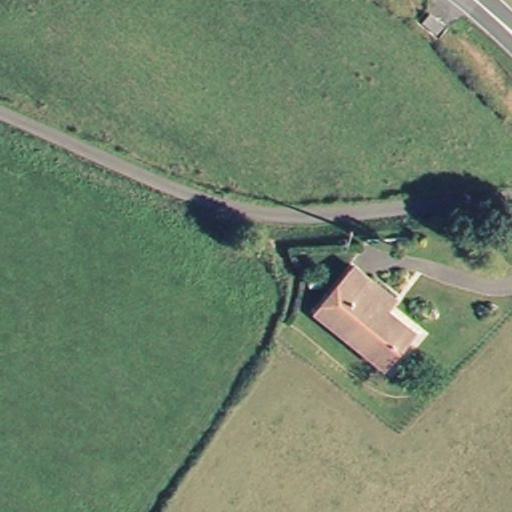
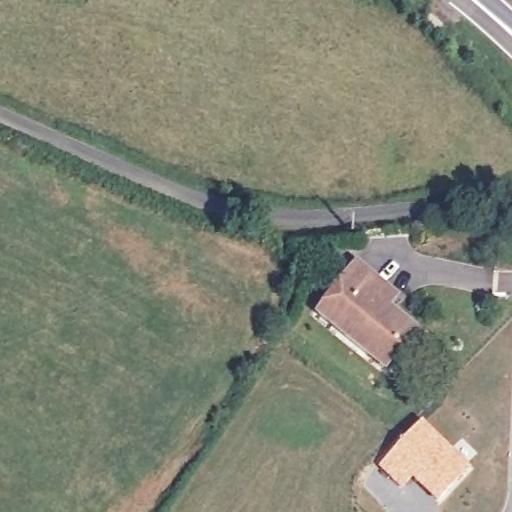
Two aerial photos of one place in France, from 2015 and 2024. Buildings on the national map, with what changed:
unchanged [(380,300),(416,329),(390,367),(320,317),(357,263),(390,286),(380,300)]
new [(422,422),(470,469),(436,504),(412,482),(402,491),(378,467),(422,422)]

